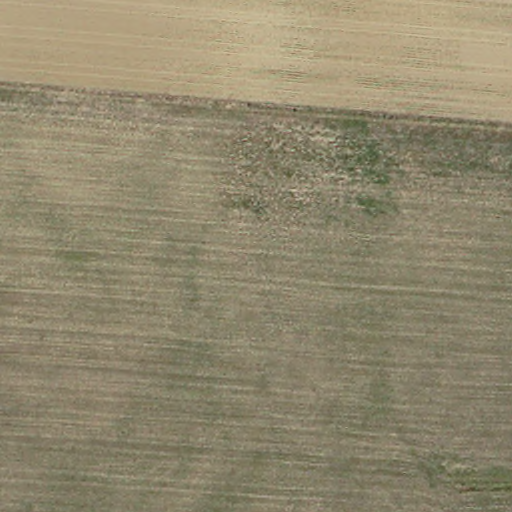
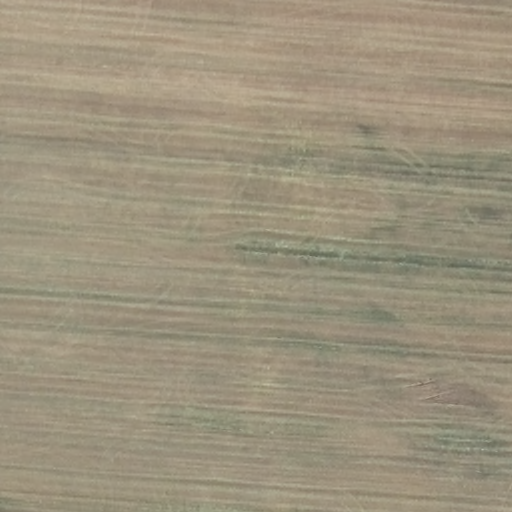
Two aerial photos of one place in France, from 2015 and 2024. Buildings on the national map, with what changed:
[]

